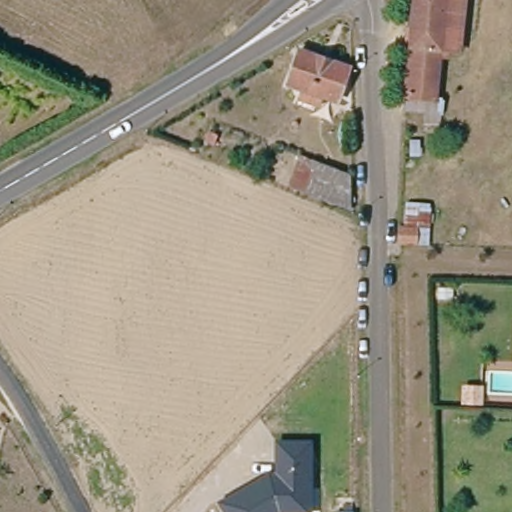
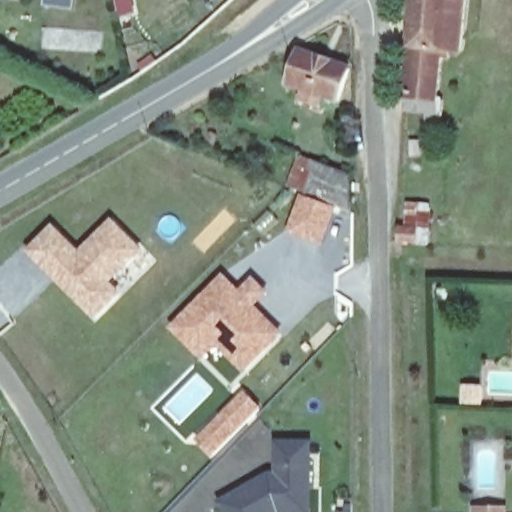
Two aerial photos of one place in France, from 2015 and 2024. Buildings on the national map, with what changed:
new [(118,17),(114,0),(132,0),(136,16),(118,17)]
unchanged [(432,117),(409,115),(420,0),(443,0),(439,45),(432,117)]
unchanged [(439,45),(443,0),(467,0),(462,47),(439,45)]
unchanged [(341,97),(322,93),(321,103),(302,99),(304,89),(292,86),(299,53),(347,62),(341,97)]
unchanged [(295,164),(296,158),(337,169),(337,175),(351,177),(352,212),(335,206),(290,191),(295,164)]
new [(287,232),(301,195),(335,206),(337,207),(323,245),(287,232)]
unchanged [(438,205),(435,248),(407,247),(408,203),(438,205)]
new [(80,250),(112,217),(144,250),(112,281),(124,291),(95,320),(26,252),(54,224),(80,250)]
new [(245,370),(218,345),(202,358),(170,327),(225,273),(242,290),(255,276),(271,292),(257,306),(284,332),(245,370)]
unchanged [(456,303),(442,302),(442,293),(456,294),(456,303)]
unchanged [(486,404),(468,403),(469,387),(486,387),(486,404)]
new [(262,407),(214,457),(195,438),(245,390),(262,407)]
unchanged [(314,440),(312,512),(223,512),(217,502),(268,473),(273,473),(275,442),(314,440)]

